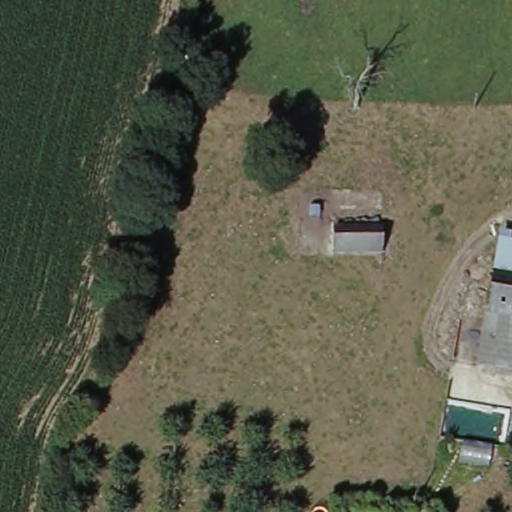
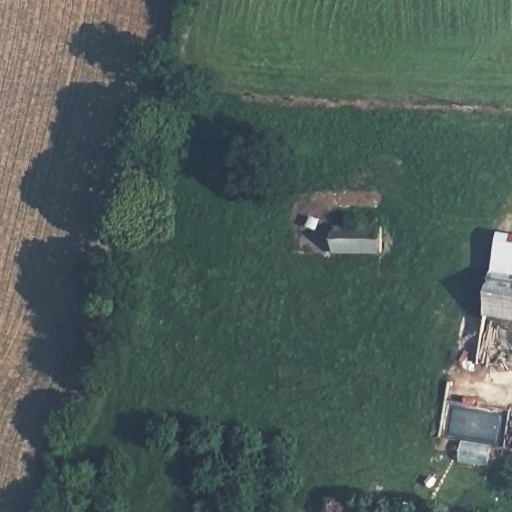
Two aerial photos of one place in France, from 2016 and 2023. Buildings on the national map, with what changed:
unchanged [(384,229),(383,255),(350,255),(334,255),(335,227),(352,227),(384,229)]
unchanged [(495,252),(499,234),(512,235),(512,255),(495,252)]
unchanged [(490,281),(495,252),(512,255),(512,284),(490,281)]
unchanged [(512,284),(512,374),(476,370),(481,332),(490,281),(512,284)]

